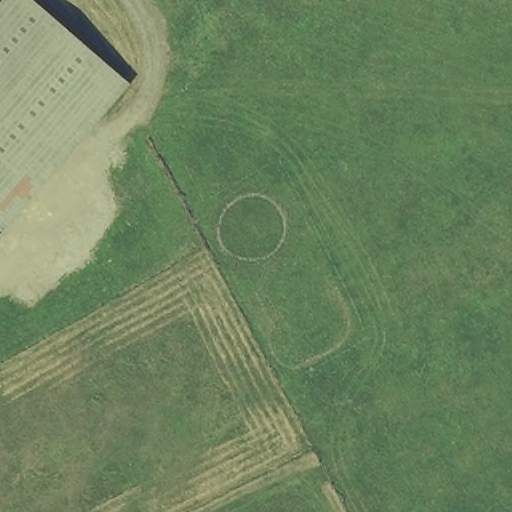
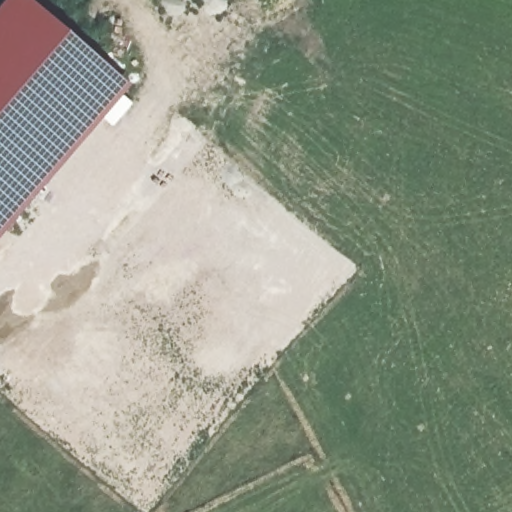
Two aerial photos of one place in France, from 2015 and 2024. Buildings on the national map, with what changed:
unchanged [(116,79),(0,215),(0,15),(13,0),(26,0),(116,79)]

